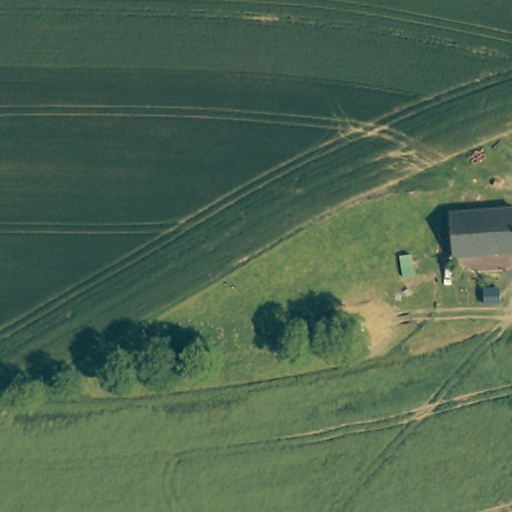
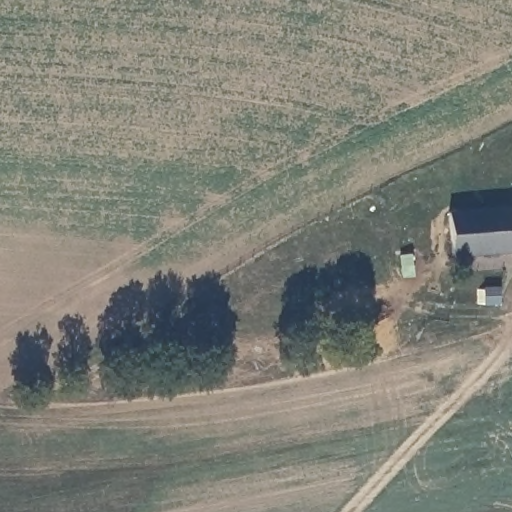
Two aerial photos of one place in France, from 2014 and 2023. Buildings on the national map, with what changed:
unchanged [(512,208),(512,213),(512,251),(449,256),(444,213),(512,208)]

